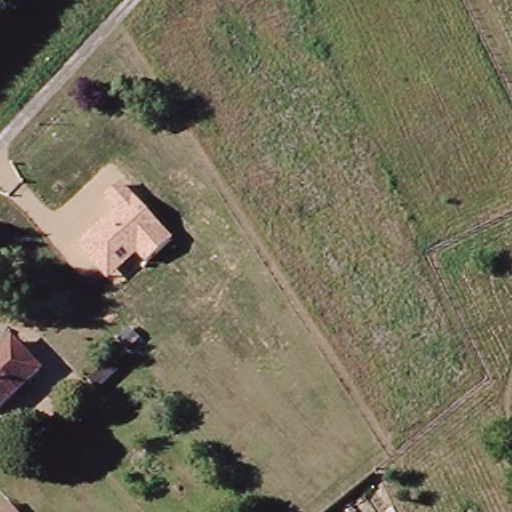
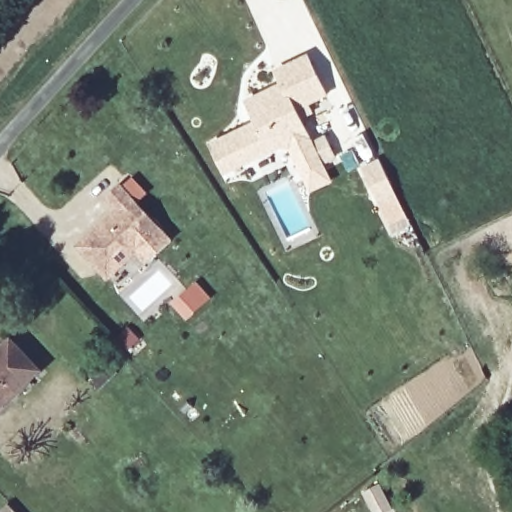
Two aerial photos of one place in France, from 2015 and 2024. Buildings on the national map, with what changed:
new [(247,102),(282,85),(277,72),(308,57),(327,95),(296,110),(312,143),(325,138),(335,157),(322,164),(323,165),(303,174),(288,143),(225,173),(212,145),(245,129),(257,123),(247,102)]
unchanged [(171,240),(145,265),(136,255),(108,282),(77,246),(117,210),(105,197),(119,184),(171,240)]
new [(412,273),(406,261),(395,237),(414,229),(425,252),(431,265),(412,273)]
unchanged [(9,342),(37,371),(0,406),(0,351),(9,342)]
unchanged [(117,373),(98,390),(90,381),(109,364),(117,373)]

